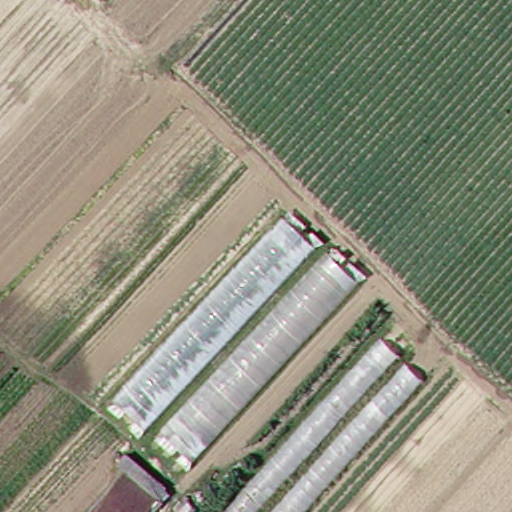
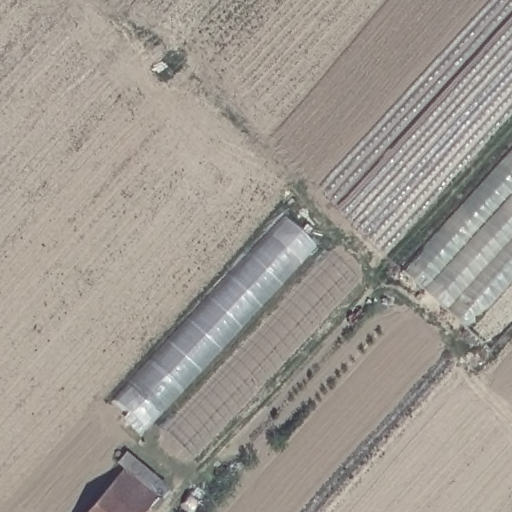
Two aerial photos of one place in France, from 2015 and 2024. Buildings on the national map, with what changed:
new [(401,268),(512,147),(512,322),(489,347),(401,268)]
unchanged [(322,246),(152,428),(119,398),(288,216),(322,246)]
unchanged [(337,252),(364,282),(190,470),(161,442),(337,252)]
demolished [(391,329),(412,346),(263,512),(229,512),(391,329)]
demolished [(417,357),(436,371),(311,512),(276,512),(417,357)]
unchanged [(137,463),(166,490),(163,494),(147,512),(95,512),(137,463)]

